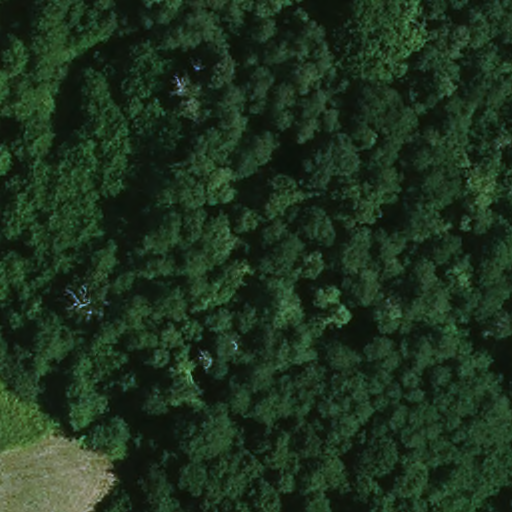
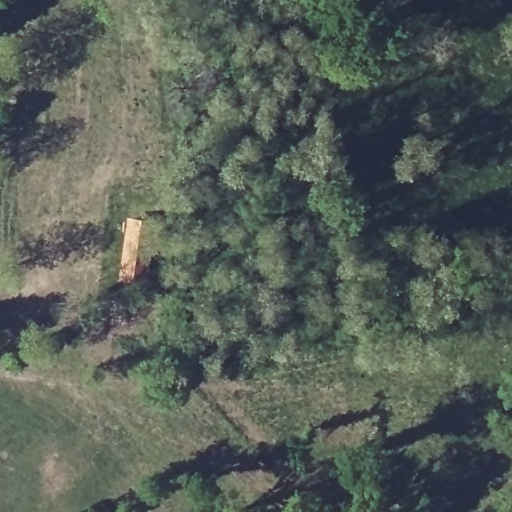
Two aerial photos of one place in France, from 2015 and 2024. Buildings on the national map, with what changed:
[]

